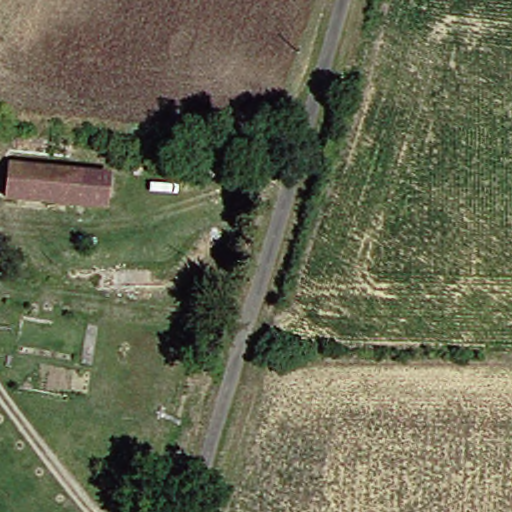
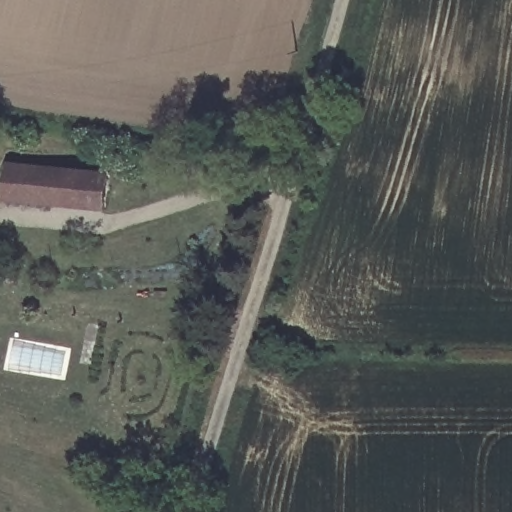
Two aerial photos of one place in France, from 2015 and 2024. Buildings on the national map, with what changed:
unchanged [(13,158),(112,165),(112,173),(110,186),(107,199),(9,192),(13,158)]
unchanged [(5,240),(3,259),(0,259),(0,240),(5,240)]

